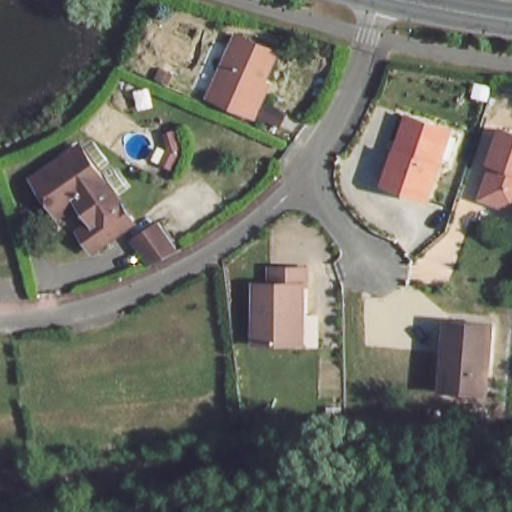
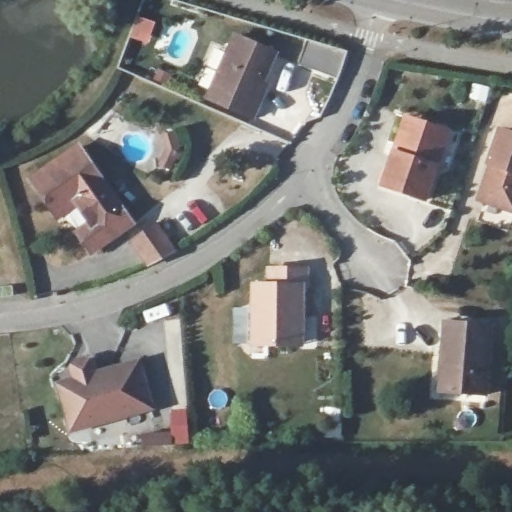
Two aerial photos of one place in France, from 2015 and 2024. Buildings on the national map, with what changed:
unchanged [(264,99),(257,115),(213,97),(239,34),(277,50),(265,79),(271,82),(264,99)]
unchanged [(426,199),(383,185),(395,150),(406,116),(413,119),(449,130),(426,199)]
unchanged [(512,133),(512,209),(485,200),(497,165),(491,162),(503,129),(512,133)]
unchanged [(94,245),(82,228),(99,217),(83,196),(61,211),(36,173),(81,142),(133,219),(94,245)]
unchanged [(159,217),(178,246),(169,250),(150,260),(133,234),(159,217)]
unchanged [(294,345),(254,344),(255,284),(271,284),(271,269),(307,269),(307,286),(303,286),(302,316),(301,345),(294,345)]
unchanged [(446,366),(450,316),(495,320),(489,390),(454,388),(444,387),(446,366)]
new [(82,381),(78,369),(81,364),(92,360),(98,363),(102,375),(145,362),(159,407),(80,432),(66,386),(82,381)]

